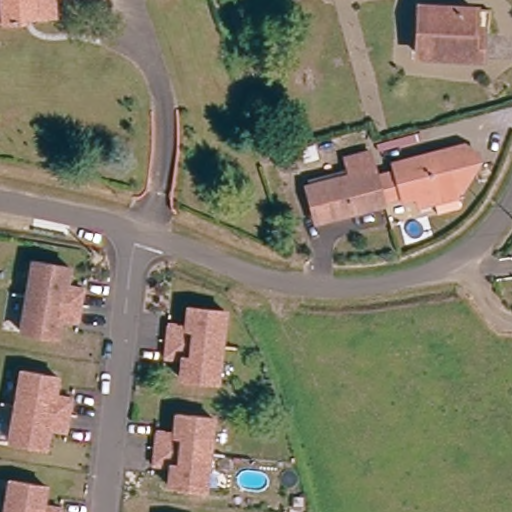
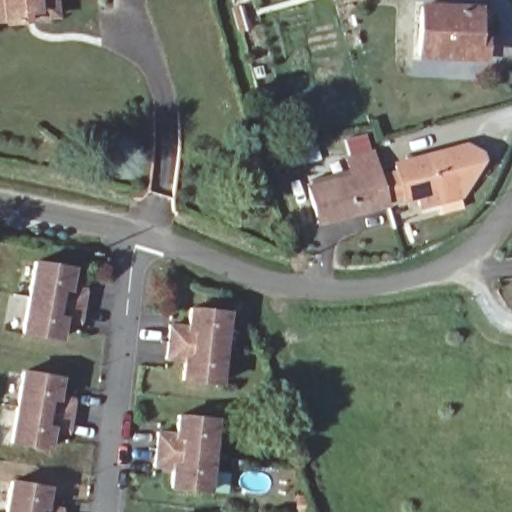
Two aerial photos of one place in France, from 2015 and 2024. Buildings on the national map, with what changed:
unchanged [(33,8),(22,9),(23,20),(1,22),(0,13),(0,0),(51,0),(52,15),(34,17),(33,8)]
unchanged [(230,9),(239,6),(246,26),(237,29),(230,9)]
unchanged [(473,9),(471,35),(478,36),(477,59),(416,56),(419,6),(473,9)]
unchanged [(382,204),(329,218),(327,214),(313,218),(304,186),(347,175),(343,160),(368,154),(375,180),(394,174),(391,166),(432,155),(434,163),(455,157),(463,143),(480,153),(459,187),(452,183),(434,188),(437,198),(426,202),(417,204),(414,195),(401,199),(399,194),(380,199),(382,204)]
unchanged [(279,157),(289,153),(294,167),(283,171),(279,157)]
unchanged [(42,258),(78,265),(75,284),(92,288),(86,319),(69,316),(65,336),(29,329),(42,258)]
unchanged [(223,382),(187,378),(189,358),(172,356),(175,324),(192,326),(194,306),(231,309),(223,382)]
unchanged [(26,369),(62,375),(58,395),(75,398),(69,430),(52,427),(49,447),(13,440),(26,369)]
unchanged [(212,490),(175,486),(177,466),(160,464),(164,432),(181,434),(183,414),(219,418),(212,490)]
unchanged [(20,479),(56,486),(52,505),(69,509),(69,512),(14,512),(20,479)]

